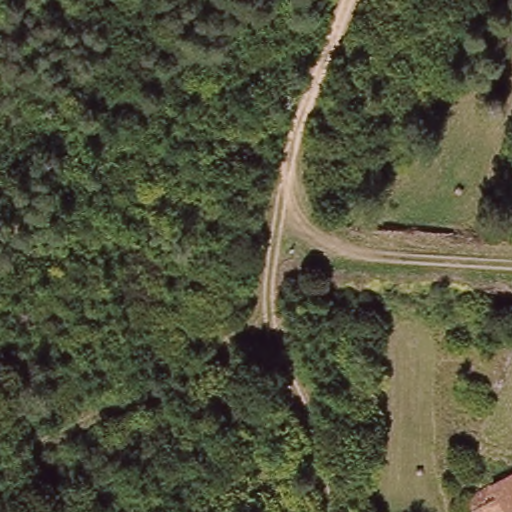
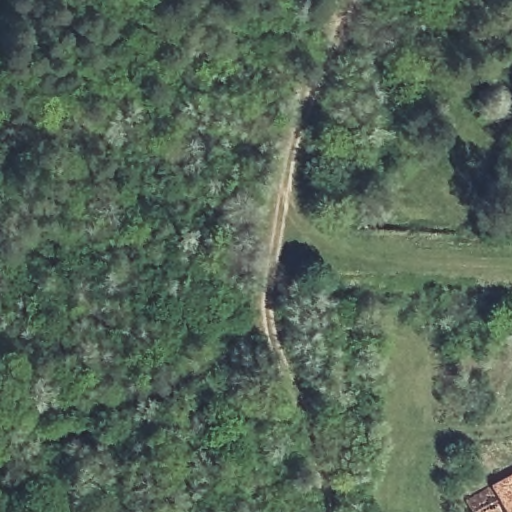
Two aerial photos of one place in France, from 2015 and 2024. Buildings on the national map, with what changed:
unchanged [(494,512),(471,512),(465,500),(512,475),(512,512),(506,512),(503,507),(494,512)]

